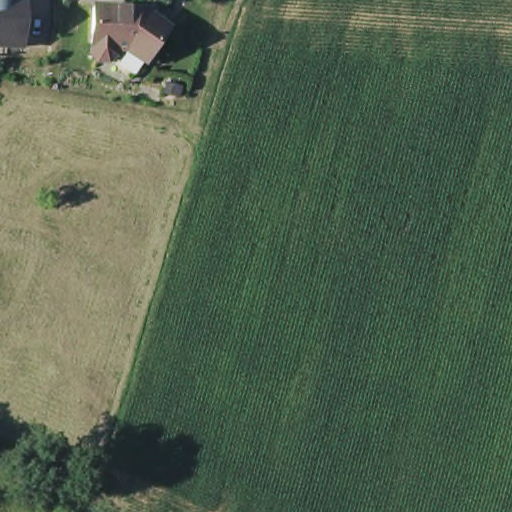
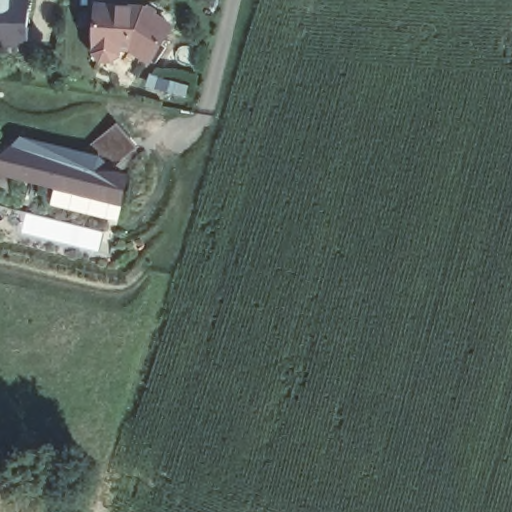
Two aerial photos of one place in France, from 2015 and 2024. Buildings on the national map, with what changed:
unchanged [(26,47),(0,46),(0,0),(29,0),(26,47)]
unchanged [(143,10),(147,6),(175,28),(149,65),(129,51),(120,50),(122,57),(102,67),(92,52),(95,6),(143,10)]
new [(113,170),(130,172),(122,205),(54,187),(0,174),(0,154),(21,136),(79,151),(118,122),(137,146),(113,170)]
new [(54,187),(122,205),(118,221),(50,204),(54,187)]

